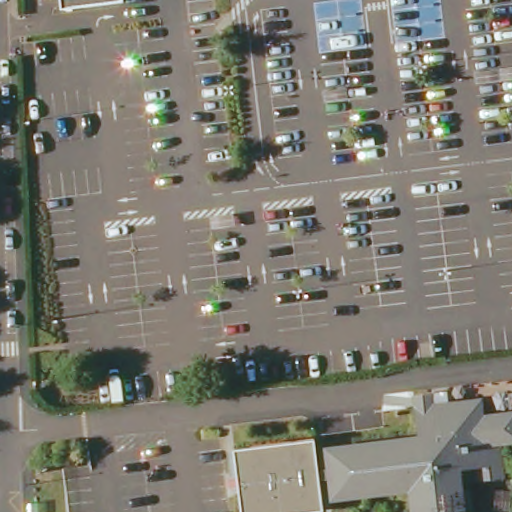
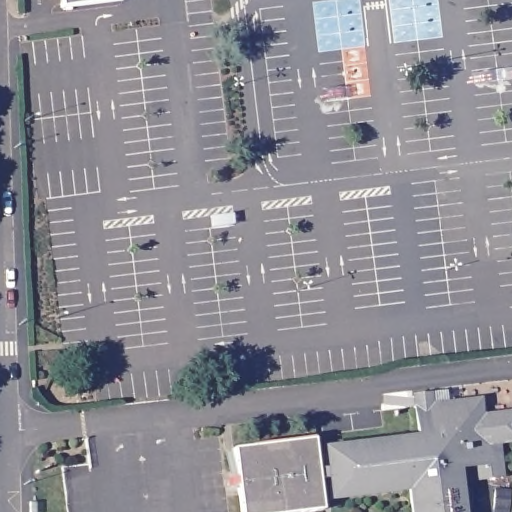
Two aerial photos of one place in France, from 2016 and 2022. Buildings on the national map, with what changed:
unchanged [(116,0),(117,2),(56,10),(55,0),(116,0)]
unchanged [(404,487),(328,496),(322,447),(414,434),(410,404),(477,396),(480,410),(512,406),(512,410),(512,439),(498,442),(501,474),(475,477),(472,464),(456,466),(461,512),(408,512),(404,487)]
unchanged [(312,440),(320,506),(278,512),(239,512),(232,450),(312,440)]

